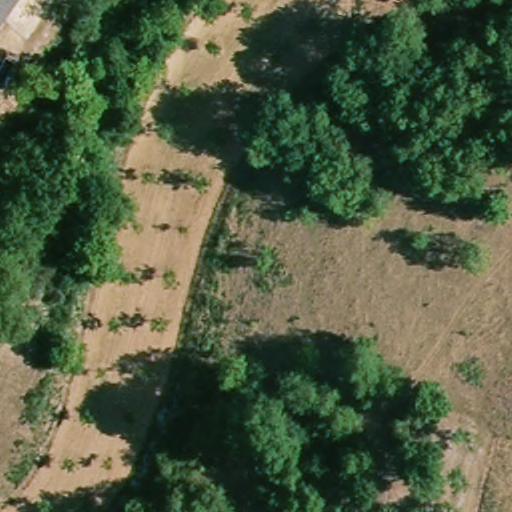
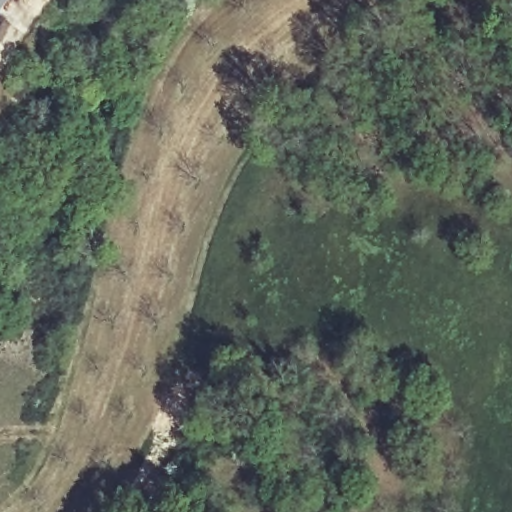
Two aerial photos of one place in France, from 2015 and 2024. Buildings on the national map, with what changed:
unchanged [(0,15),(0,0),(12,0),(0,15)]

